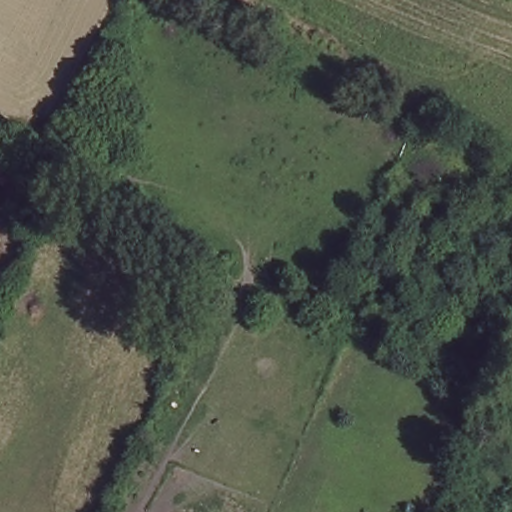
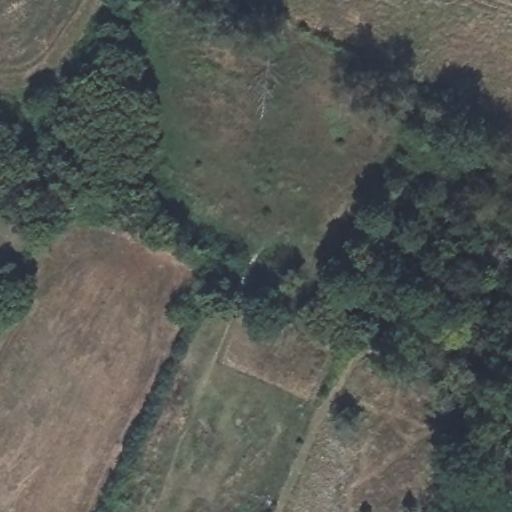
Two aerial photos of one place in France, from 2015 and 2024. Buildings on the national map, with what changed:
[]

